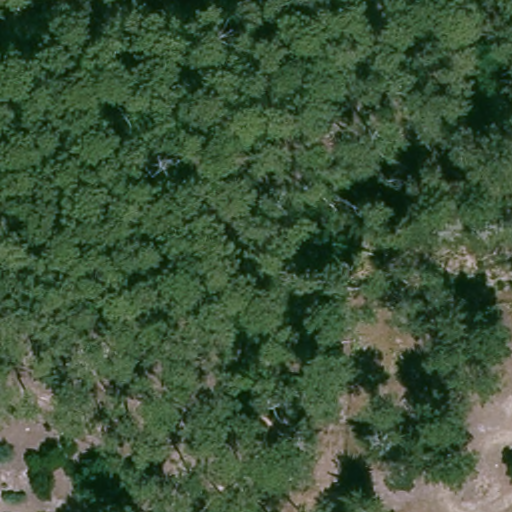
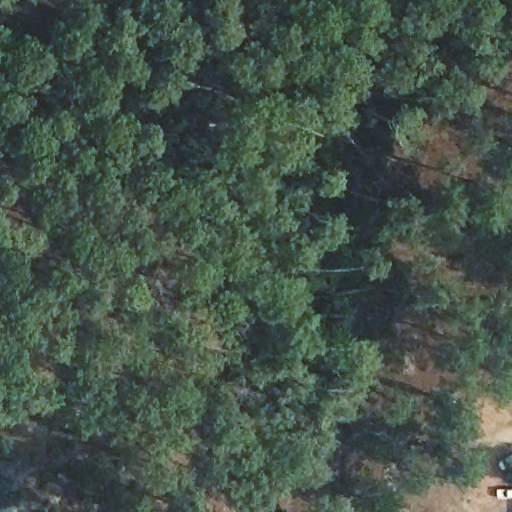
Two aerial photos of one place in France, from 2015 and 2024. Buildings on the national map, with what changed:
[]

